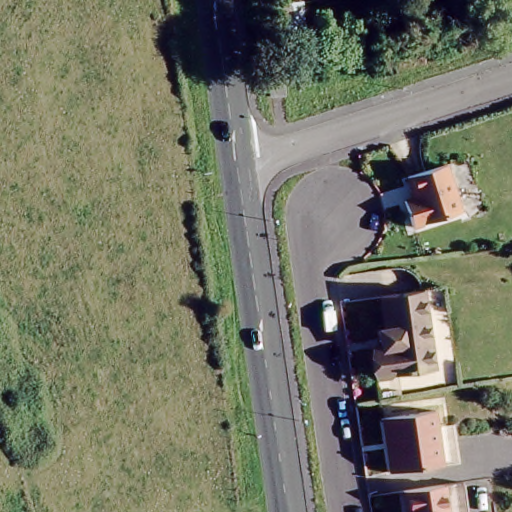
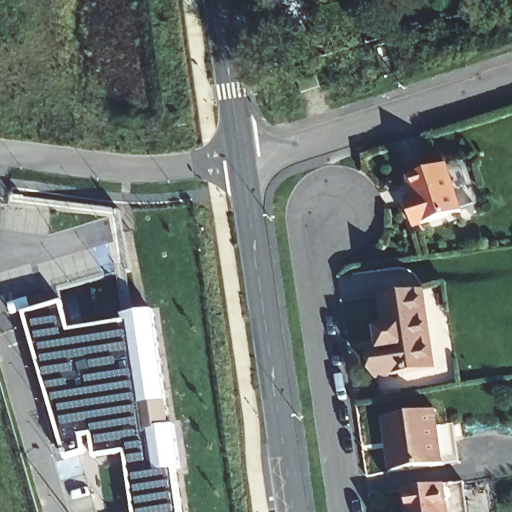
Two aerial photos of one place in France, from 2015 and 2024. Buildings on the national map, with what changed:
new [(305,50),(286,52),(282,12),(301,10),(305,50)]
unchanged [(451,160),(466,207),(419,222),(410,196),(419,193),(413,172),(451,160)]
unchanged [(429,376),(374,382),(371,356),(378,355),(376,336),(382,335),(379,300),(418,295),(429,376)]
new [(138,512),(131,462),(67,469),(29,318),(78,302),(88,332),(155,327),(181,512),(138,512)]
unchanged [(438,405),(440,422),(446,460),(394,467),(393,454),(395,454),(394,443),(391,444),(387,413),(438,405)]
unchanged [(445,485),(449,512),(409,512),(406,491),(437,486),(445,485)]

